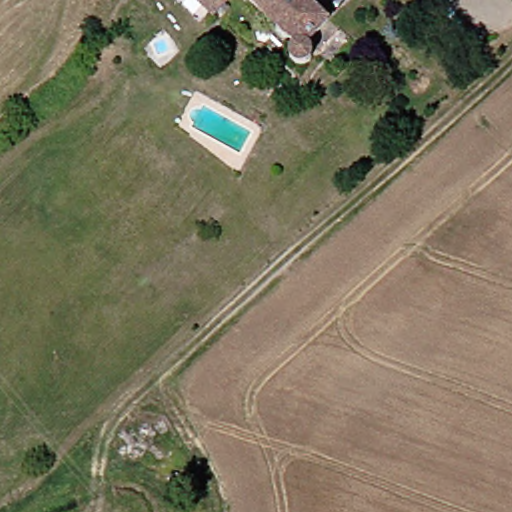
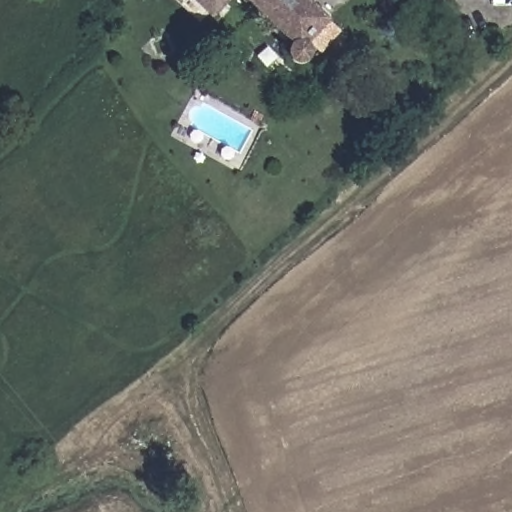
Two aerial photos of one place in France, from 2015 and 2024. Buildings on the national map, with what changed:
unchanged [(220,14),(206,0),(234,0),(220,14)]
unchanged [(305,48),(308,58),(305,61),(301,64),(297,64),(291,62),(288,59),(288,55),(288,51),(291,48),(292,47),(247,0),(313,0),(331,19),(305,48)]

